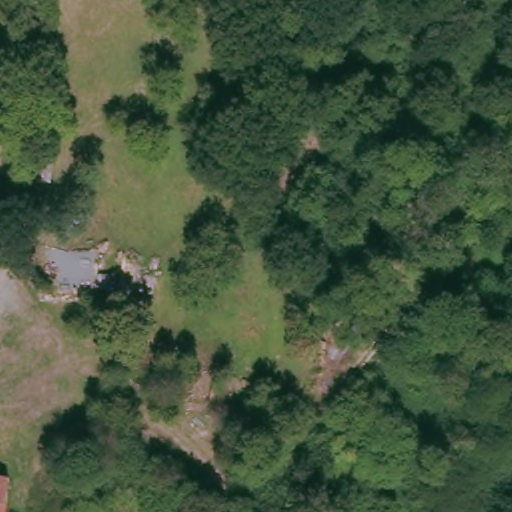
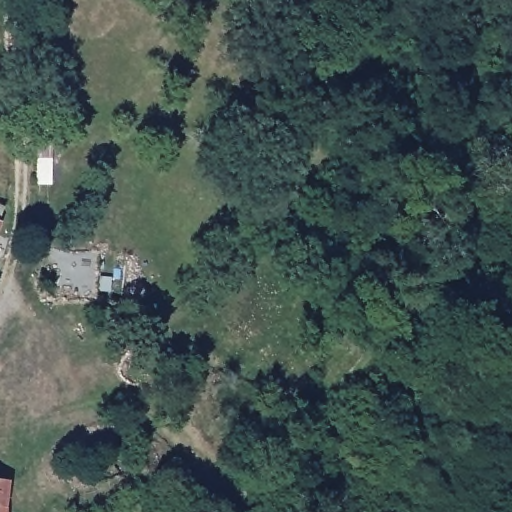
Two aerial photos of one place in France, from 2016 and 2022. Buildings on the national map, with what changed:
unchanged [(37,183),(37,157),(52,158),(52,184),(37,183)]
unchanged [(0,219),(0,203),(5,206),(0,219)]
unchanged [(7,512),(0,512),(0,479),(10,480),(7,512)]

